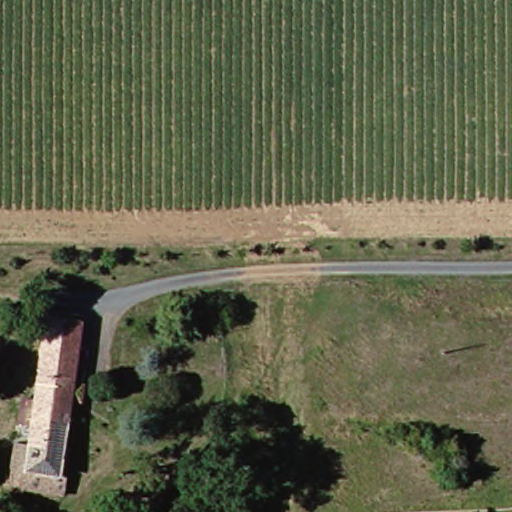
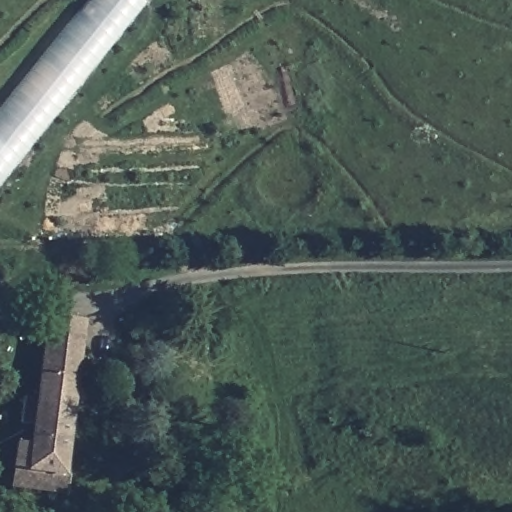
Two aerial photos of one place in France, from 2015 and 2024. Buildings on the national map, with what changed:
new [(89,0),(142,0),(147,4),(0,189),(0,112),(89,0)]
unchanged [(50,502),(15,497),(15,482),(8,480),(11,460),(25,462),(45,320),(75,327),(50,502)]

